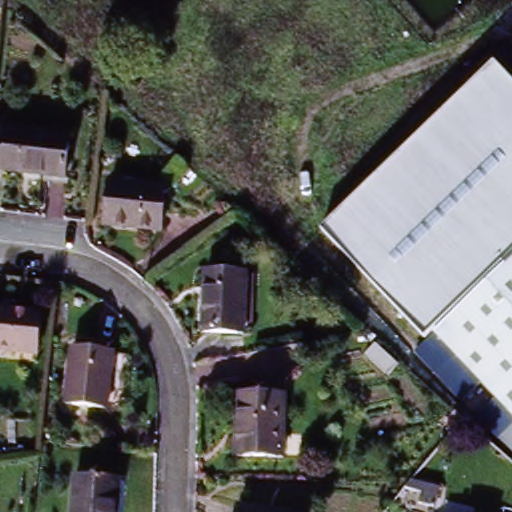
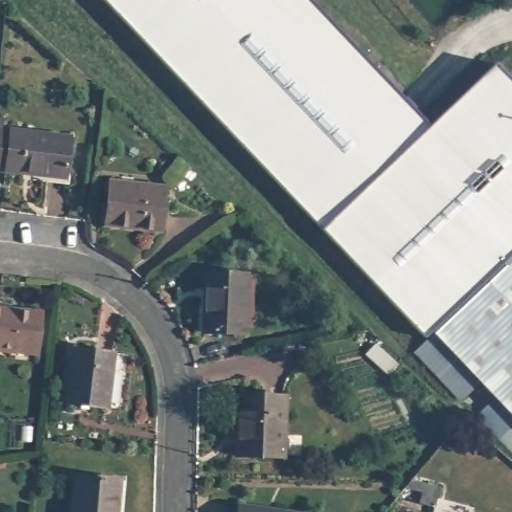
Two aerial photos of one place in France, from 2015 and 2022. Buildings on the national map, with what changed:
new [(346,44),(240,149),(100,0),(305,0),(346,44)]
new [(324,230),(319,234),(240,149),(346,44),(427,130),(324,230)]
unchanged [(430,333),(425,337),(324,230),(427,130),(494,66),(512,86),(512,271),(441,338),(430,333)]
unchanged [(0,126),(73,135),(67,177),(0,168),(0,126)]
unchanged [(160,230),(105,222),(111,182),(166,190),(160,230)]
unchanged [(441,338),(512,271),(512,414),(441,338)]
unchanged [(240,333),(199,331),(202,273),(244,275),(240,333)]
unchanged [(37,346),(0,342),(0,305),(42,310),(37,346)]
unchanged [(64,401),(71,346),(111,350),(105,406),(64,401)]
unchanged [(404,368),(394,379),(371,359),(381,347),(404,368)]
unchanged [(241,395),(285,397),(284,457),(239,456),(241,395)]
unchanged [(119,476),(115,512),(72,512),(76,472),(119,476)]
unchanged [(419,502),(421,495),(403,488),(406,485),(411,479),(441,490),(434,508),(419,502)]
unchanged [(274,512),(240,512),(240,508),(274,512)]

